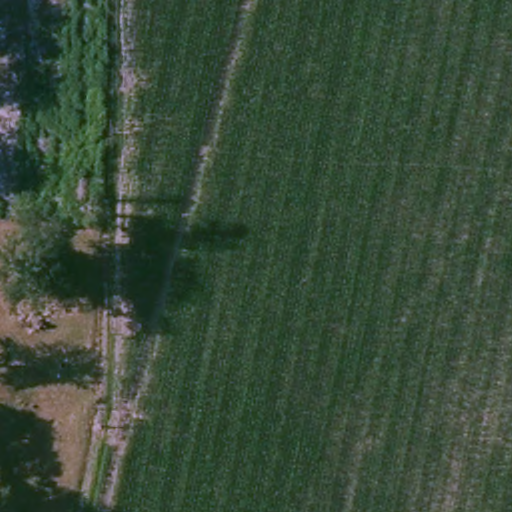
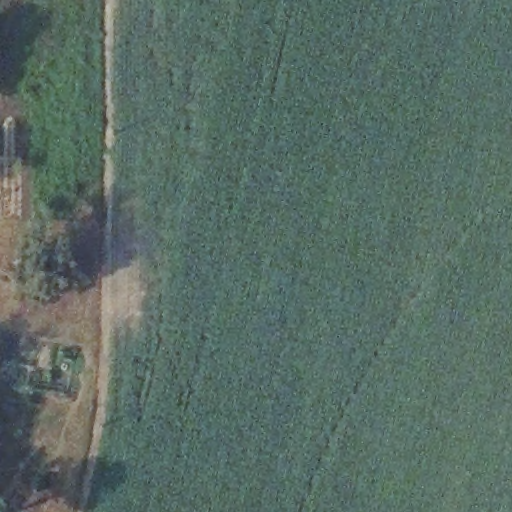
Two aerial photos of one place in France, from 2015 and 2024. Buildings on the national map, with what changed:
[]

